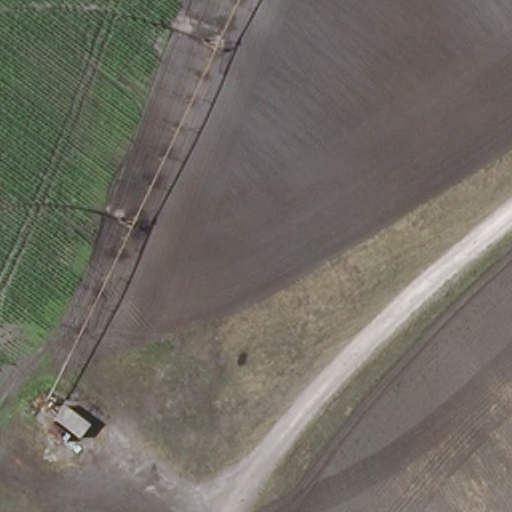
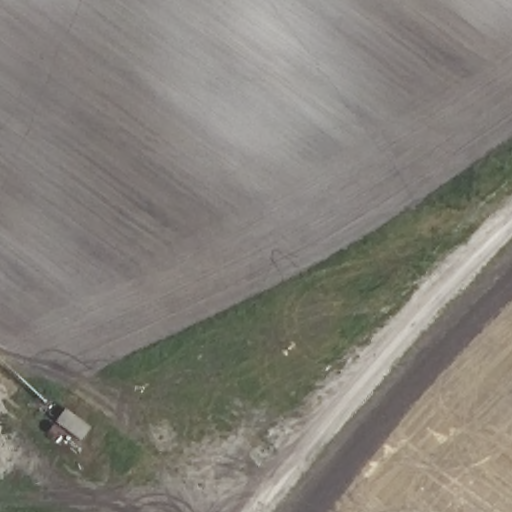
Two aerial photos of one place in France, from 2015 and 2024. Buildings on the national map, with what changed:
unchanged [(79,442),(51,423),(61,406),(90,425),(79,442)]

